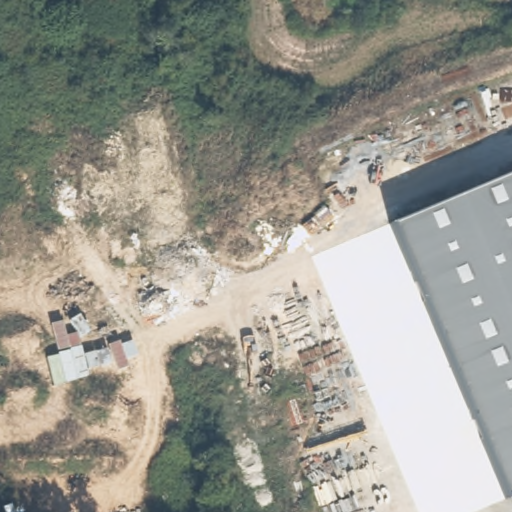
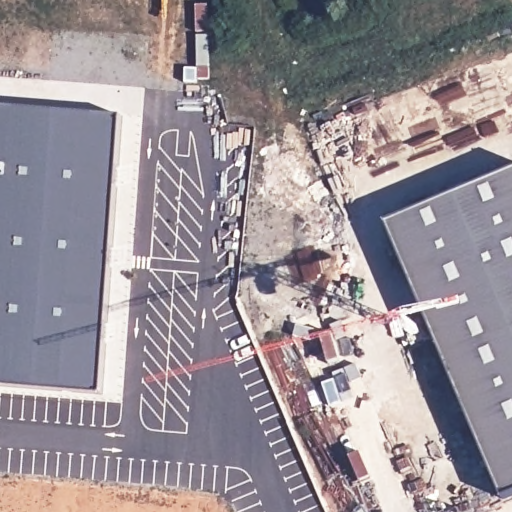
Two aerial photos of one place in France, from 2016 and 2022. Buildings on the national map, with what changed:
new [(0,384),(0,109),(124,119),(101,393),(0,384)]
unchanged [(512,186),(512,505),(510,505),(396,231),(512,186)]

